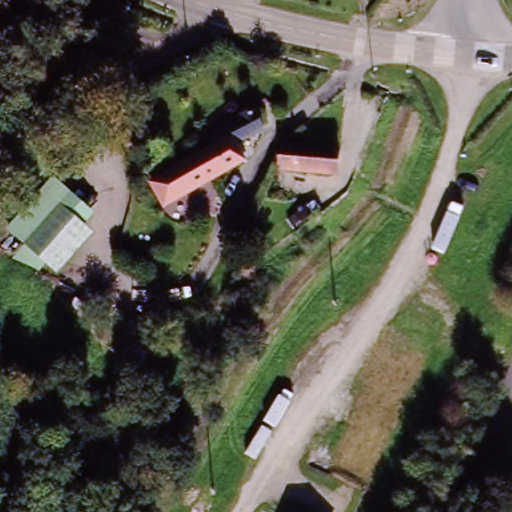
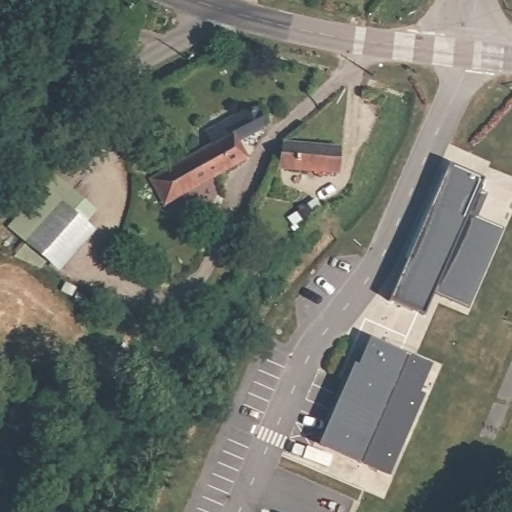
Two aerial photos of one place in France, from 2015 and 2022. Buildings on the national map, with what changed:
unchanged [(247,159),(171,195),(162,172),(222,144),(218,133),(232,127),(230,117),(253,109),(263,134),(240,143),(247,159)]
unchanged [(338,173),(281,171),(285,144),(339,146),(338,173)]
new [(486,183),(473,219),(505,232),(472,311),(436,297),(428,316),(395,304),(451,167),(486,183)]
unchanged [(52,208),(84,234),(54,271),(22,244),(52,208)]
new [(431,366),(420,395),(425,397),(389,478),(317,447),(354,365),(358,366),(370,340),(431,366)]

